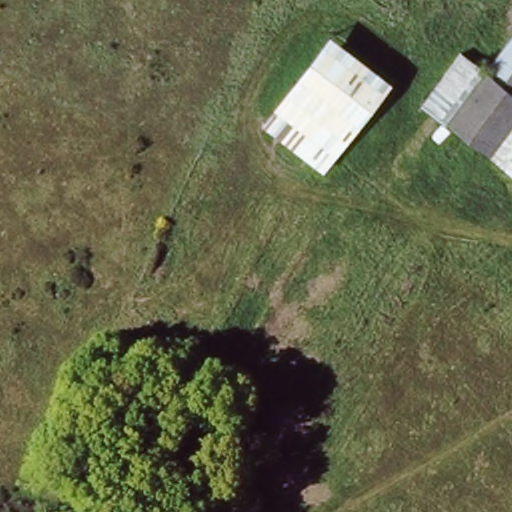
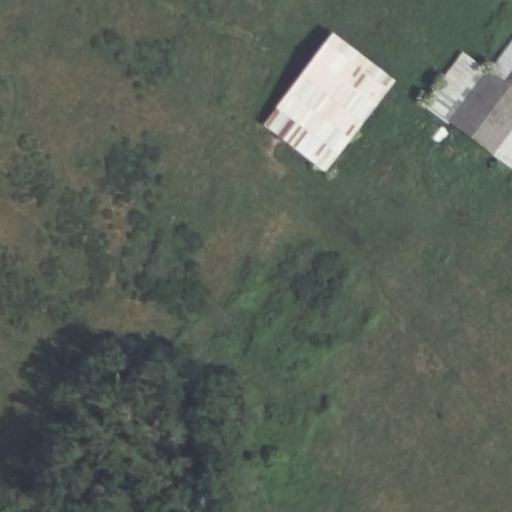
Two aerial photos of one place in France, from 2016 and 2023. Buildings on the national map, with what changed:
unchanged [(391,84),(325,169),(266,124),(331,39),(391,84)]
unchanged [(512,91),(489,73),(512,43),(512,91)]
unchanged [(512,91),(512,165),(424,101),(463,52),(489,73),(512,91)]

